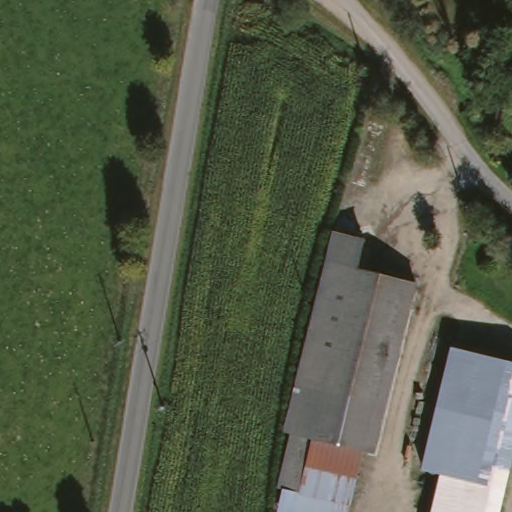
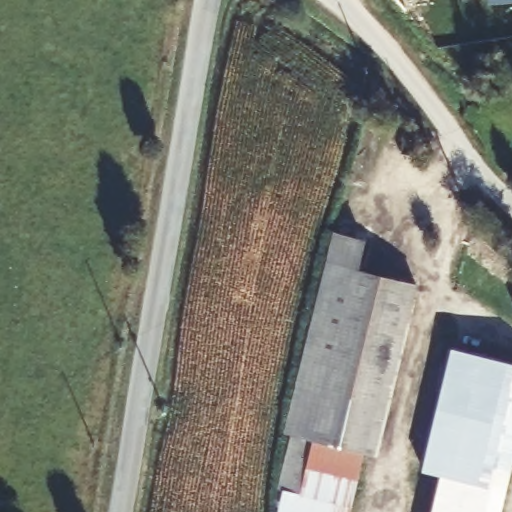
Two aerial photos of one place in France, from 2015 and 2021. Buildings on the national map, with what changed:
new [(512,0),(487,1),(487,0),(512,0)]
unchanged [(277,496),(286,439),(281,437),(290,404),(313,303),(332,231),(366,236),(360,266),(415,278),(376,449),(364,447),(351,512),(284,512),(286,498),(277,496)]
unchanged [(430,512),(439,470),(424,466),(453,345),(512,359),(512,472),(508,489),(503,512),(430,512)]

